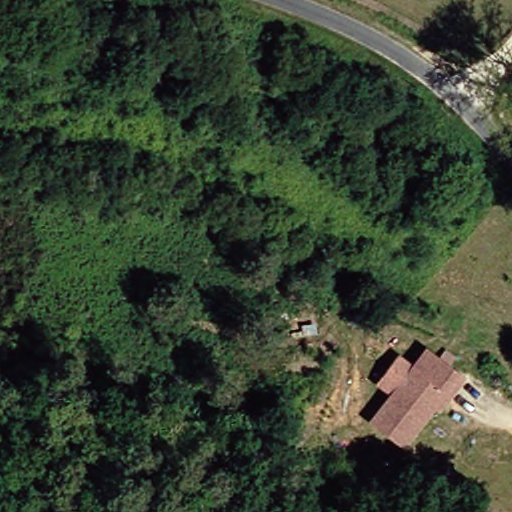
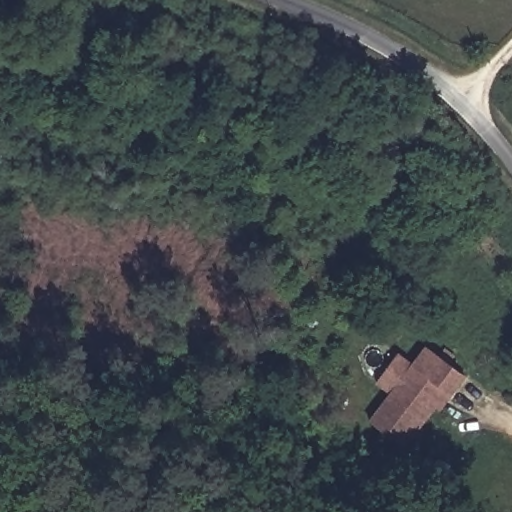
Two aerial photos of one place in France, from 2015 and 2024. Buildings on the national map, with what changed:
unchanged [(440,411),(435,408),(406,450),(371,425),(392,396),(377,386),(399,355),(412,366),(425,347),(465,375),(440,411)]

